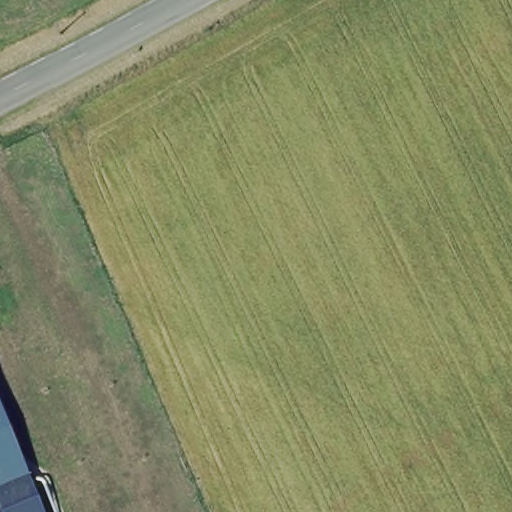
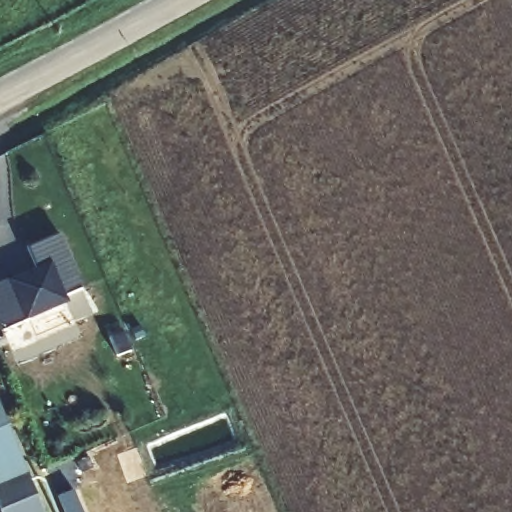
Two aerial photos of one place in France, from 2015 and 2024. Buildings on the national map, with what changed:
new [(28,250),(61,236),(84,290),(69,297),(71,305),(1,332),(0,329),(0,284),(36,270),(28,250)]
unchanged [(43,512),(0,512),(0,407),(43,512)]

